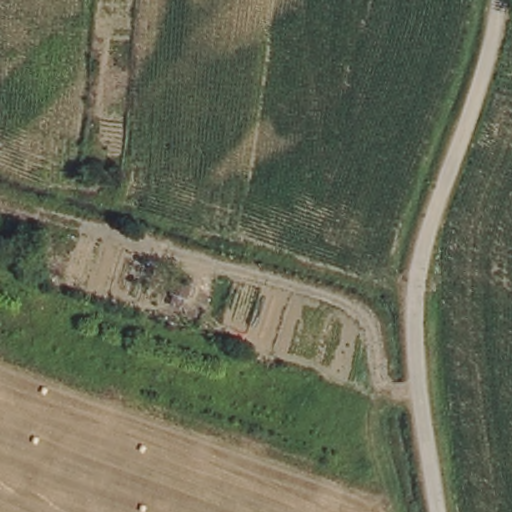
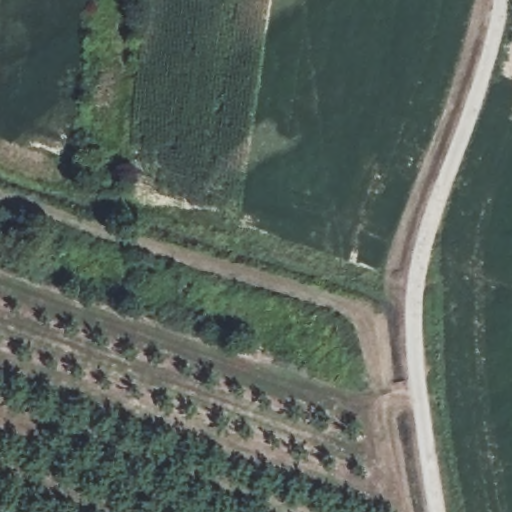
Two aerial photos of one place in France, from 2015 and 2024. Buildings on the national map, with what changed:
unchanged [(182,275),(193,281),(187,291),(176,286),(182,275)]

